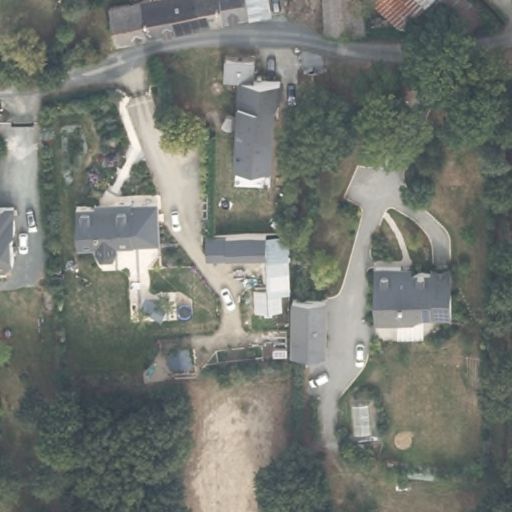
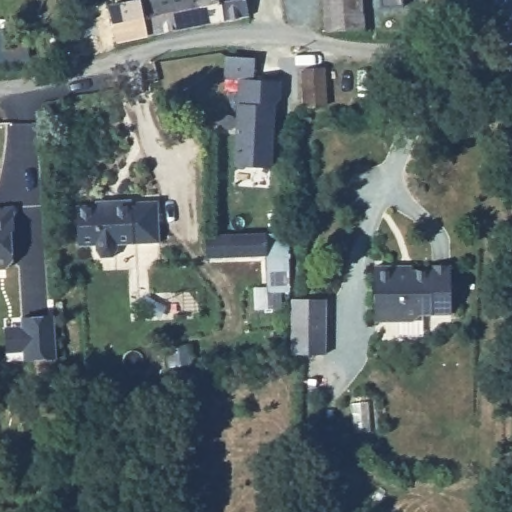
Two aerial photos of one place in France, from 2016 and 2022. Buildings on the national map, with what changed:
unchanged [(138,0),(142,0),(150,36),(114,43),(107,7),(138,0)]
unchanged [(246,18),(150,36),(142,0),(264,0),(267,14),(246,18)]
unchanged [(362,33),(327,32),(326,0),(365,0),(367,27),(362,33)]
unchanged [(222,82),(224,60),(252,60),(251,83),(222,82)]
unchanged [(321,70),(321,90),(302,90),(301,69),(321,70)]
unchanged [(281,81),(281,102),(274,102),(272,167),(236,165),(239,83),(251,83),(251,80),(281,81)]
unchanged [(135,243),(121,244),(112,255),(102,254),(99,251),(97,245),(80,245),(78,205),(107,204),(112,196),(129,196),(132,202),(156,202),(156,212),(157,242),(135,243)]
unchanged [(12,204),(15,232),(7,234),(10,262),(5,271),(0,271),(0,205),(12,204)]
unchanged [(206,230),(265,228),(266,256),(207,258),(206,230)]
unchanged [(265,233),(287,233),(292,292),(283,292),(283,307),(257,308),(257,287),(266,287),(266,256),(265,233)]
unchanged [(418,317),(413,322),(408,323),(374,322),(375,268),(401,268),(402,274),(432,274),(433,270),(452,270),(452,296),(451,317),(418,317)]
unchanged [(296,296),(329,296),(328,350),(293,349),(296,296)]
new [(22,352),(6,354),(3,327),(21,325),(20,317),(53,314),(57,360),(24,362),(22,352)]

